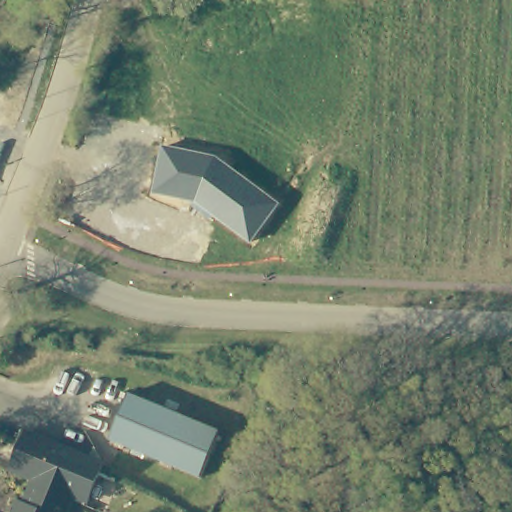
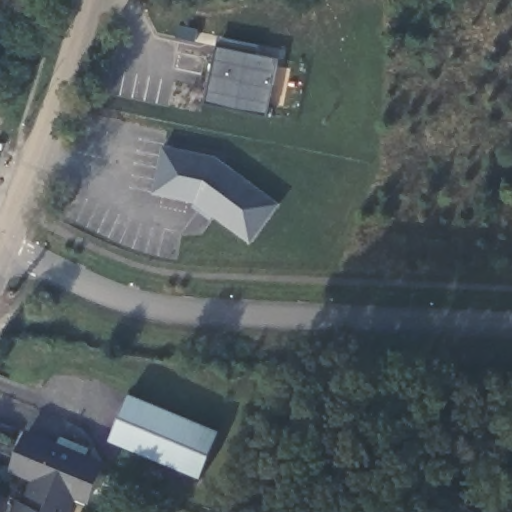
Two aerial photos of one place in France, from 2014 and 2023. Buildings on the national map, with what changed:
new [(256,54),(279,58),(267,114),(204,103),(218,36),(259,44),(256,54)]
unchanged [(195,202),(153,193),(162,147),(218,157),(280,205),(251,243),(195,202)]
unchanged [(218,431),(199,481),(107,444),(126,395),(218,431)]
unchanged [(69,500),(64,512),(10,512),(13,507),(19,508),(31,484),(6,473),(23,434),(99,467),(83,506),(69,500)]

